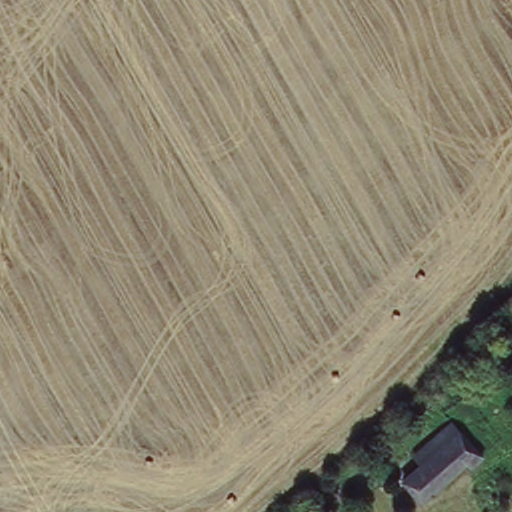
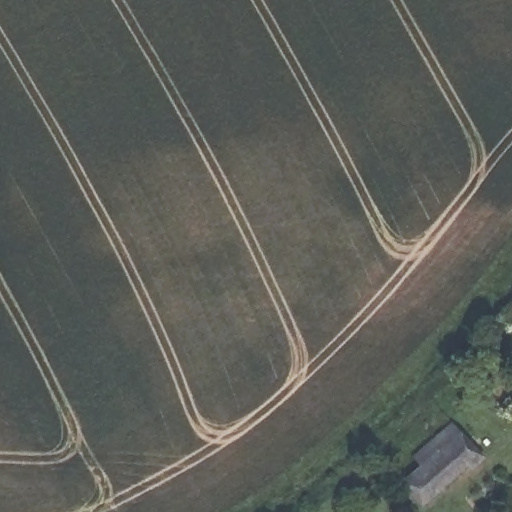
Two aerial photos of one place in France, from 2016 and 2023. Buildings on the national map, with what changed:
unchanged [(410,460),(447,423),(477,456),(466,467),(463,463),(445,444),(418,468),(410,460)]
unchanged [(401,483),(406,479),(418,468),(445,444),(463,463),(425,498),(419,504),(401,483)]

